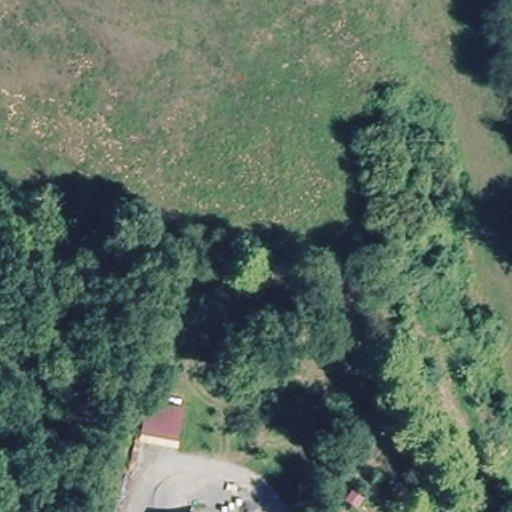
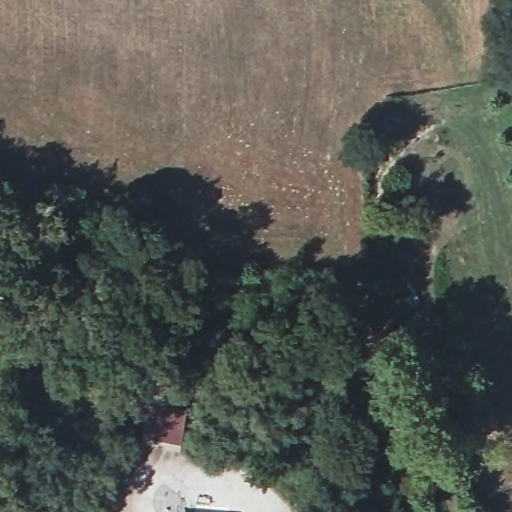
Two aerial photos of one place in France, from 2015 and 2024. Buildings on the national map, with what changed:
unchanged [(179,443),(141,436),(148,399),(185,407),(179,443)]

